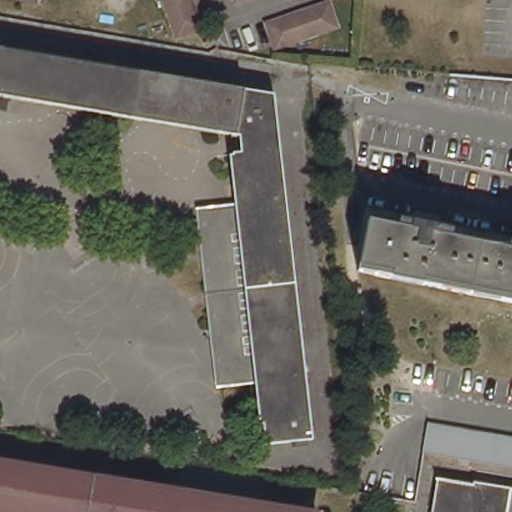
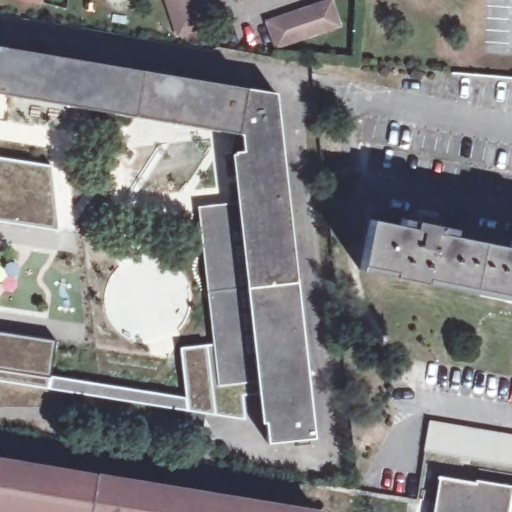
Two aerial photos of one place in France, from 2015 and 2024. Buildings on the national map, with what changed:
unchanged [(204,22),(180,31),(169,0),(196,0),(204,22)]
unchanged [(235,2),(234,0),(242,0),(235,2)]
unchanged [(337,27),(313,35),(300,39),(274,47),(266,23),(297,12),(311,8),(329,2),(337,27)]
unchanged [(0,94),(0,47),(278,98),(317,443),(271,448),(263,382),(223,386),(205,221),(202,203),(241,199),(235,152),(233,135),(0,94)]
new [(59,231),(0,222),(0,159),(50,166),(59,231)]
unchanged [(403,227),(405,221),(458,232),(457,238),(512,249),(512,301),(365,272),(374,221),(403,227)]
new [(263,382),(265,394),(242,397),(245,421),(216,416),(0,382),(0,333),(53,341),(49,376),(185,398),(180,348),(218,344),(223,386),(263,382)]
unchanged [(429,452),(435,421),(512,435),(512,466),(429,452)]
unchanged [(30,512),(0,507),(0,459),(307,512),(30,512)]
unchanged [(512,492),(512,512),(441,512),(447,480),(512,492)]

